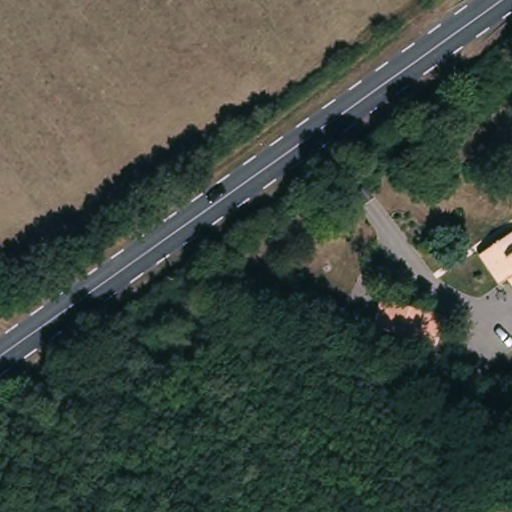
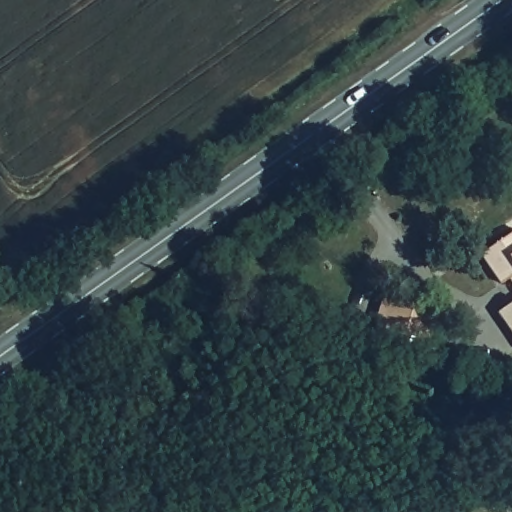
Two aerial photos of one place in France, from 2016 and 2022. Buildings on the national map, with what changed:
unchanged [(485,254),(512,233),(512,275),(504,281),(485,254)]
unchanged [(420,321),(405,316),(353,301),(361,276),(412,292),(425,296),(420,321)]

